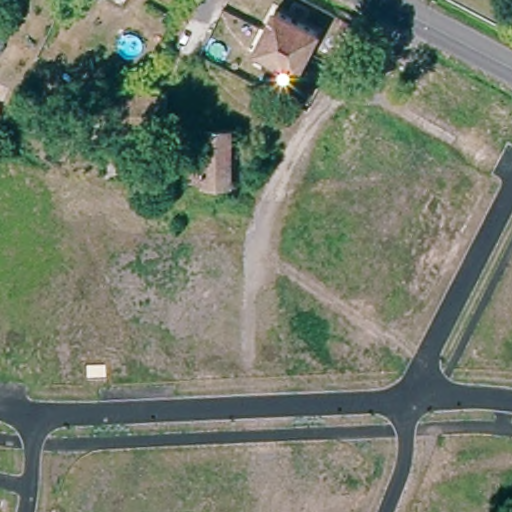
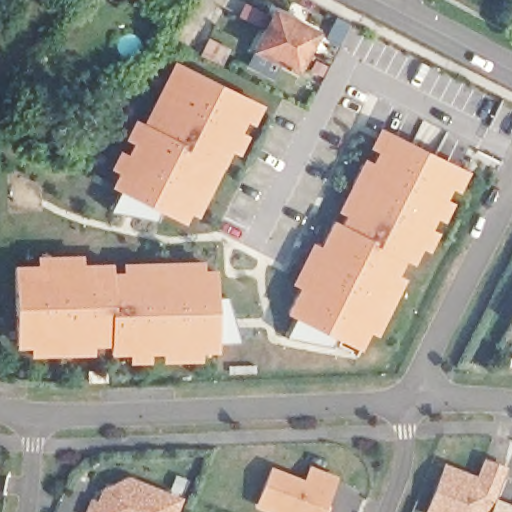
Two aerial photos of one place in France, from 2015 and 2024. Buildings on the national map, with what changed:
unchanged [(271,16),(313,36),(294,76),(252,54),(271,16)]
new [(264,105),(254,126),(246,122),(242,132),(250,135),(239,157),(231,152),(199,218),(189,214),(183,225),(109,187),(117,172),(109,169),(119,149),(126,154),(132,144),(124,139),(135,119),(143,122),(173,61),(264,105)]
demolished [(169,102),(168,134),(123,133),(123,102),(158,102),(169,102)]
new [(459,192),(452,189),(447,200),(454,203),(445,222),(437,220),(432,230),(440,233),(430,252),(422,249),(414,266),(404,262),(398,276),(406,280),(378,337),(369,333),(360,351),(285,314),(300,288),(290,283),(312,242),(320,246),(333,221),(341,224),(345,216),(338,212),(364,158),(372,162),(377,151),(369,147),(379,127),(469,172),(459,192)]
demolished [(169,155),(190,155),(190,167),(196,169),(197,132),(237,132),(237,187),(210,187),(211,185),(197,183),(197,175),(169,175),(169,155)]
new [(37,263),(36,255),(82,254),(82,262),(112,262),(113,271),(122,270),(122,261),(205,261),(205,268),(216,268),(219,352),(202,352),(202,361),(162,362),(162,353),(150,354),(151,362),(129,364),(128,353),(109,355),(109,346),(93,346),(93,355),(30,357),(30,347),(16,347),(13,264),(37,263)]
new [(508,321),(512,313),(512,323),(508,321)]
new [(476,477),(483,458),(488,461),(504,467),(491,500),(486,512),(424,512),(443,464),(476,477)]
new [(254,502),(268,467),(301,480),(307,466),(331,476),(317,512),(279,512),(254,502)]
new [(95,501),(100,486),(103,480),(109,482),(124,476),(176,497),(170,512),(83,512),(88,498),(95,501)]
new [(491,500),(512,508),(512,512),(486,512),(491,500)]

